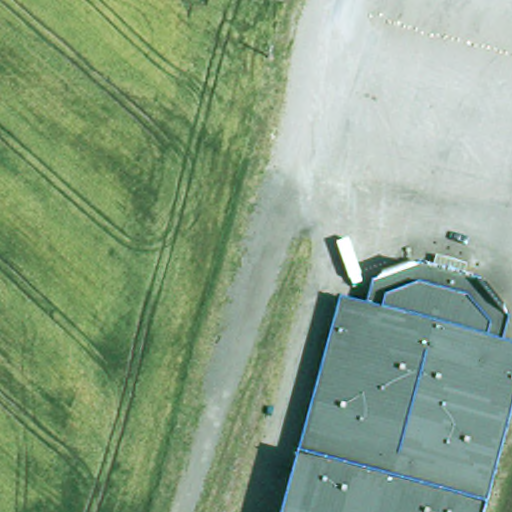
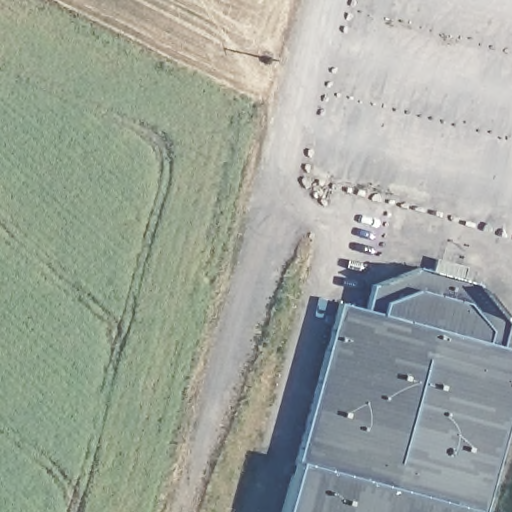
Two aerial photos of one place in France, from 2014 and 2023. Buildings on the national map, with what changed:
unchanged [(371,309),(376,285),(423,259),(468,271),(403,512),(281,512),(340,302),(371,309)]
unchanged [(485,275),(510,320),(503,346),(512,348),(512,422),(487,512),(403,512),(468,271),(485,275)]

